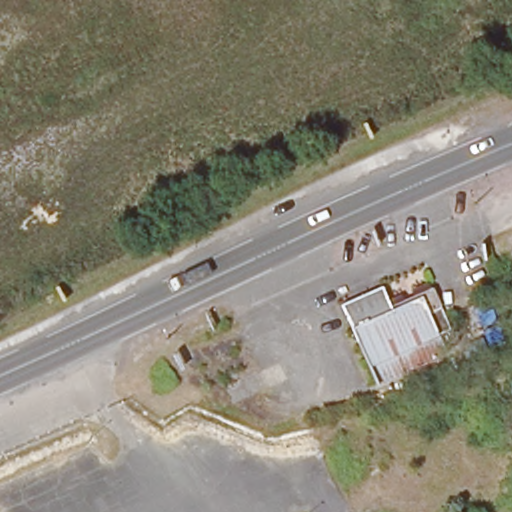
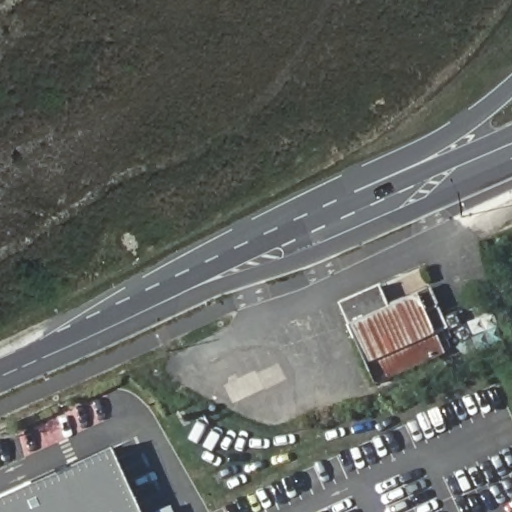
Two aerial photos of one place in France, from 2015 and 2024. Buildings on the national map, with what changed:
unchanged [(340,304),(381,286),(391,310),(435,290),(443,309),(432,314),(449,354),(377,386),(340,304)]
new [(144,512),(0,512),(0,496),(114,444),(144,512)]

